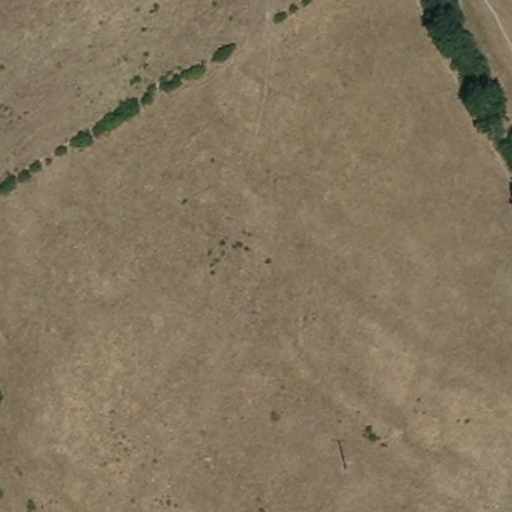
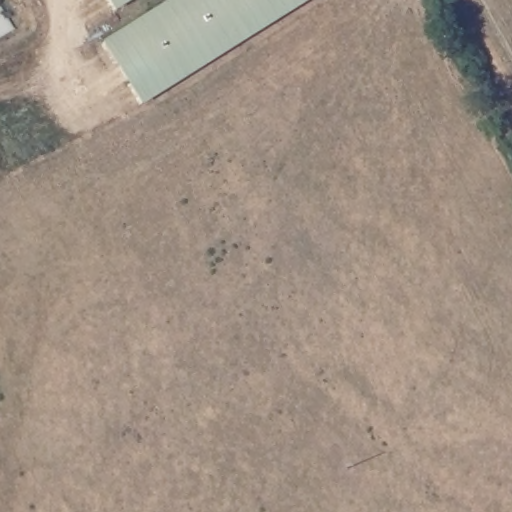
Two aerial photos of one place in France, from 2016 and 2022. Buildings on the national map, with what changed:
new [(145,103),(104,41),(168,0),(308,0),(145,103)]
new [(116,10),(110,0),(132,0),(116,10)]

